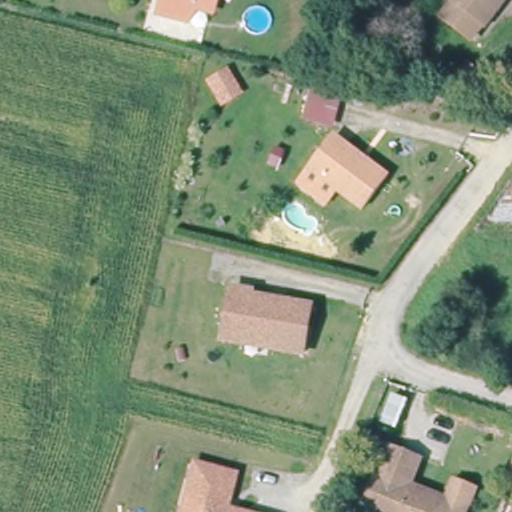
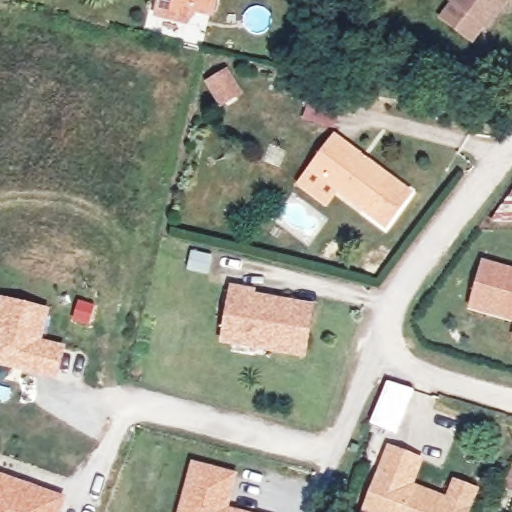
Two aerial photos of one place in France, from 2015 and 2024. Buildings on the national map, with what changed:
unchanged [(152,16),(156,0),(220,0),(216,16),(201,11),(186,25),(152,16)]
unchanged [(453,0),(509,0),(491,24),(477,40),(445,14),(453,0)]
unchanged [(476,105),(455,90),(477,60),(499,78),(476,105)]
unchanged [(242,95),(219,108),(204,81),(228,68),(242,95)]
unchanged [(311,88),(342,95),(335,125),(304,120),(311,88)]
unchanged [(335,127),(393,178),(368,211),(340,188),(306,161),(335,127)]
unchanged [(306,161),(340,188),(326,208),(293,182),(306,161)]
unchanged [(512,190),(512,222),(491,222),(512,190)]
unchanged [(250,346),(252,336),(227,328),(231,309),(233,307),(239,280),(261,286),(260,292),(316,306),(306,350),(273,342),(270,351),(250,346)]
new [(49,307),(42,338),(65,344),(57,379),(0,365),(0,295),(49,307)]
unchanged [(400,427),(375,418),(390,381),(414,389),(400,427)]
unchanged [(484,486),(476,512),(378,512),(395,452),(407,455),(426,460),(419,486),(460,500),(465,480),(484,486)]
unchanged [(235,512),(182,512),(192,467),(232,475),(225,510),(235,512)]
new [(66,495),(59,512),(0,512),(0,472),(66,495)]
unchanged [(512,489),(512,492),(511,492),(512,489)]

